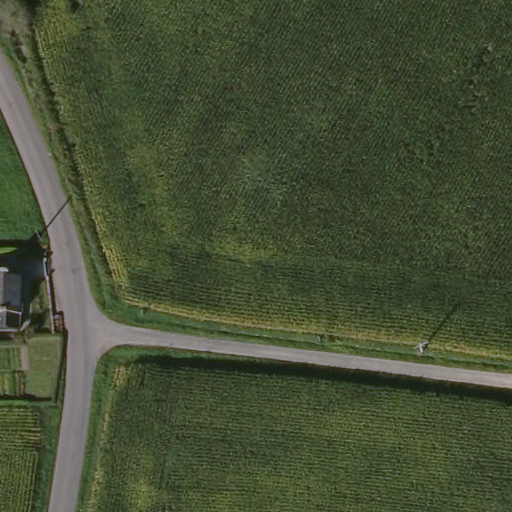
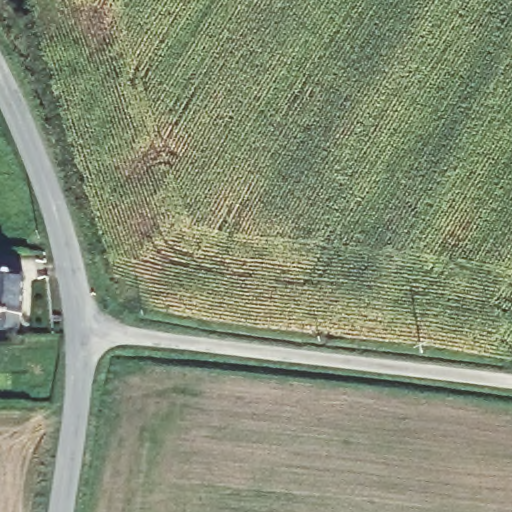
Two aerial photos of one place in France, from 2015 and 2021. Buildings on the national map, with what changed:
unchanged [(27,316),(27,328),(4,330),(2,317),(0,316),(0,274),(32,275),(31,316),(27,316)]

